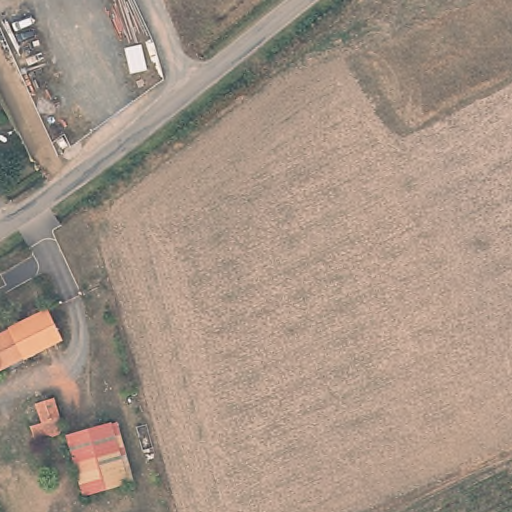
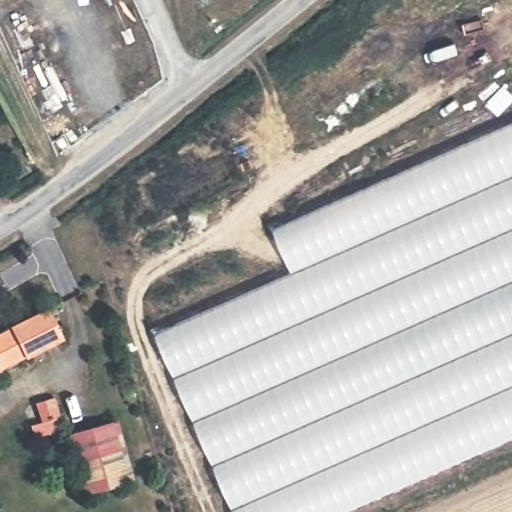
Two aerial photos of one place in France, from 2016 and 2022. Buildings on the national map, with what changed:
new [(233,512),(154,333),(292,272),(272,228),(512,123),(512,438),(346,512),(233,512)]
unchanged [(61,337),(0,369),(0,331),(47,307),(61,337)]
unchanged [(59,439),(50,438),(42,438),(34,440),(32,428),(40,426),(36,407),(56,402),(64,436),(59,439)]
unchanged [(75,455),(70,440),(80,437),(106,429),(112,428),(129,485),(123,487),(96,495),(87,497),(75,455)]
unchanged [(44,442),(45,446),(40,447),(40,443),(44,442)]

